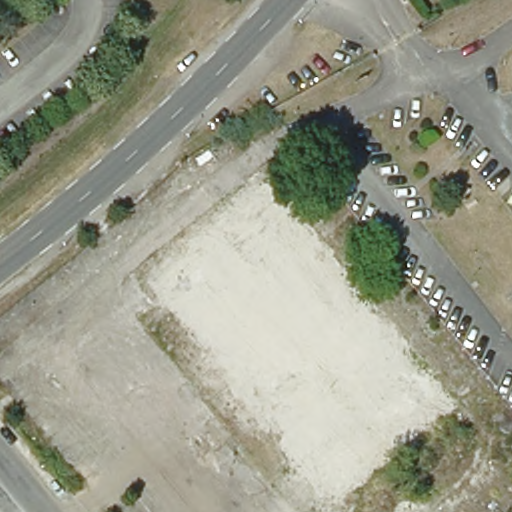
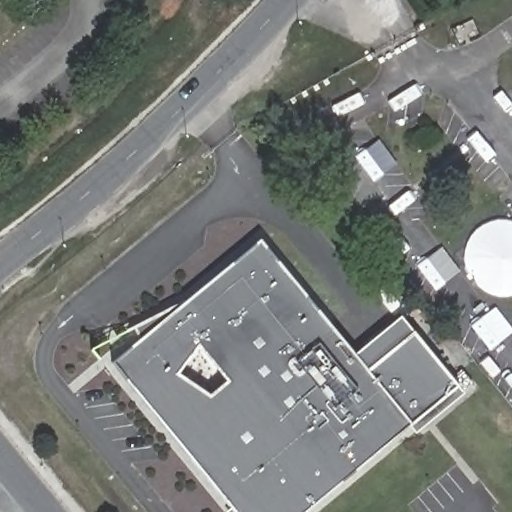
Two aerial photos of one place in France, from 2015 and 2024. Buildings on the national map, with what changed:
demolished [(318,502),(307,512),(294,512),(287,503),(306,486),(303,482),(284,498),(251,458),(271,443),(140,283),(275,174),(445,389),(456,401),(325,510),(318,502)]
new [(466,247),(469,240),(475,232),(481,226),(489,222),(497,220),(506,220),(512,222),(512,295),(511,295),(502,296),(494,295),(485,292),(478,287),(472,281),(467,273),(465,265),(465,256),(466,247)]
new [(231,507),(111,362),(139,340),(134,329),(171,313),(260,240),(356,355),(402,317),(410,327),(459,386),(308,512),(226,512),(231,507)]
new [(410,427),(459,386),(465,393),(416,433),(410,427)]

